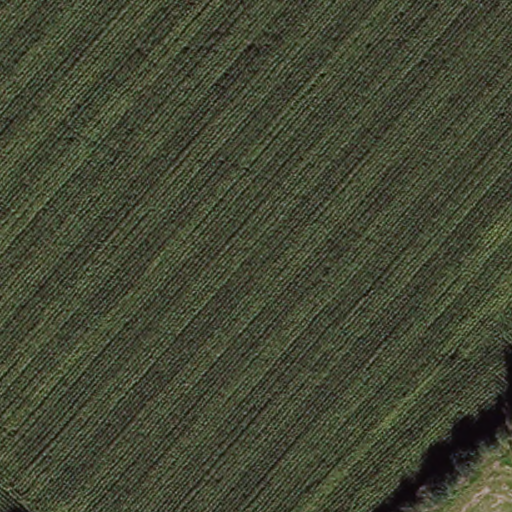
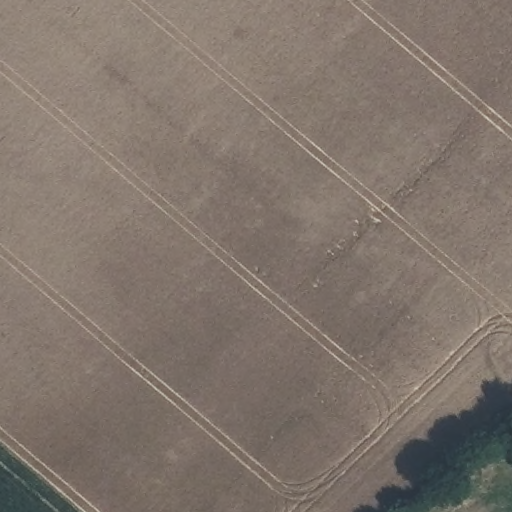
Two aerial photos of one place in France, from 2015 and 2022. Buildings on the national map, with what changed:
[]

